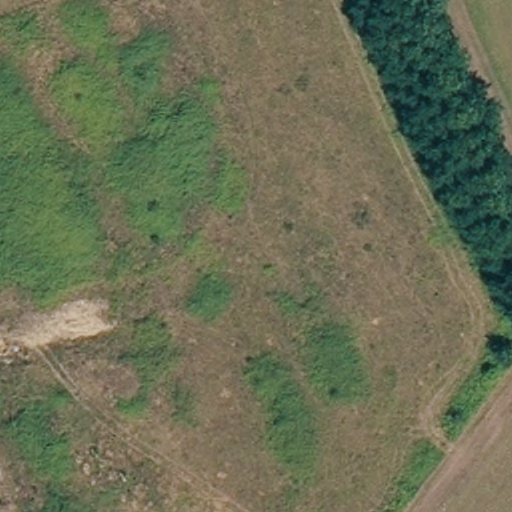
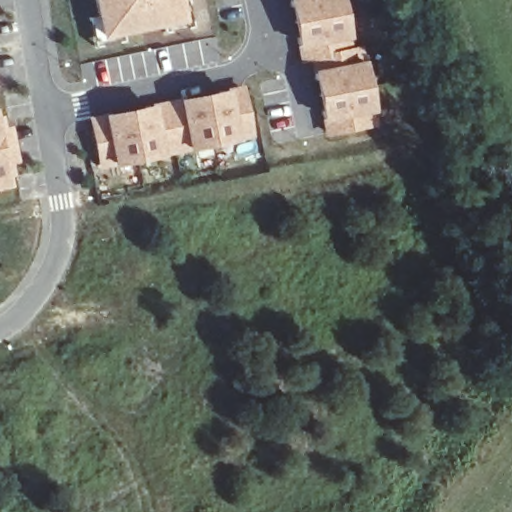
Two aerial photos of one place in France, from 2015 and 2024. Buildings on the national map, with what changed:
new [(102,35),(95,0),(179,0),(182,19),(102,35)]
new [(162,23),(182,19),(178,0),(189,0),(194,27),(165,33),(162,23)]
new [(303,59),(299,37),(292,6),(291,0),(340,0),(350,50),(360,48),(375,123),(328,133),(324,111),(317,79),(313,57),(303,59)]
new [(102,35),(122,31),(124,41),(95,47),(89,18),(99,16),(102,35)]
new [(145,109),(188,100),(220,93),(241,88),(251,135),(102,167),(92,120),(114,116),(145,109)]
new [(5,165),(7,177),(0,178),(0,166),(5,165)]
new [(1,187),(0,188),(0,179),(1,187)]

